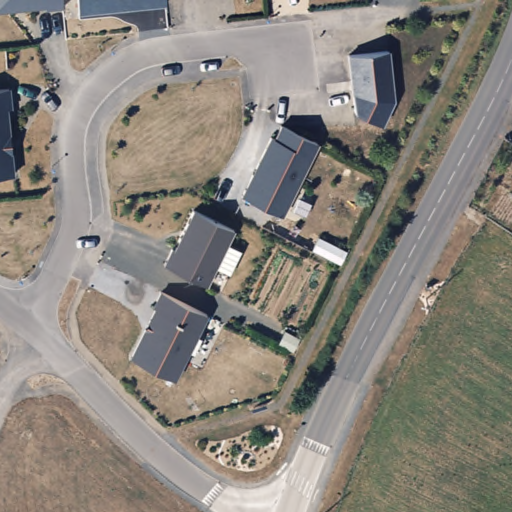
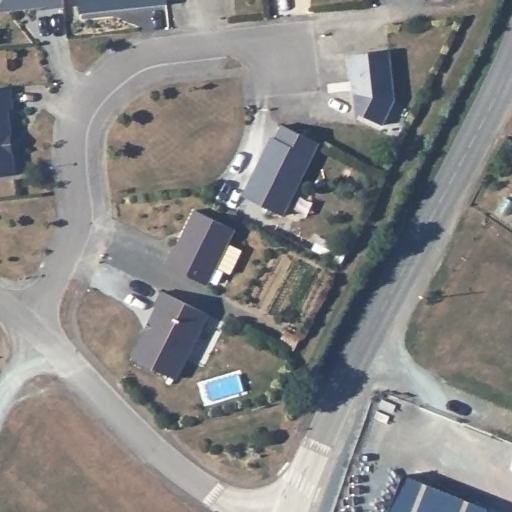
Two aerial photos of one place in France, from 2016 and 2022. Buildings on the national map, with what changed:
unchanged [(43,8),(19,10),(18,7),(0,9),(0,0),(60,0),(61,9),(44,10),(43,8)]
unchanged [(164,0),(77,10),(76,0),(164,0)]
unchanged [(391,52),(397,102),(385,126),(358,114),(352,56),(391,52)]
unchanged [(9,104),(4,105),(11,170),(0,172),(0,85),(7,85),(9,104)]
unchanged [(279,217),(240,197),(269,139),(273,140),(280,127),(286,130),(315,145),(279,217)]
unchanged [(232,227),(204,282),(162,261),(170,245),(172,246),(192,207),(232,227)]
unchanged [(164,293),(200,311),(209,315),(176,381),(133,360),(158,310),(156,308),(164,293)]
new [(402,473),(488,507),(487,512),(387,512),(402,473)]

